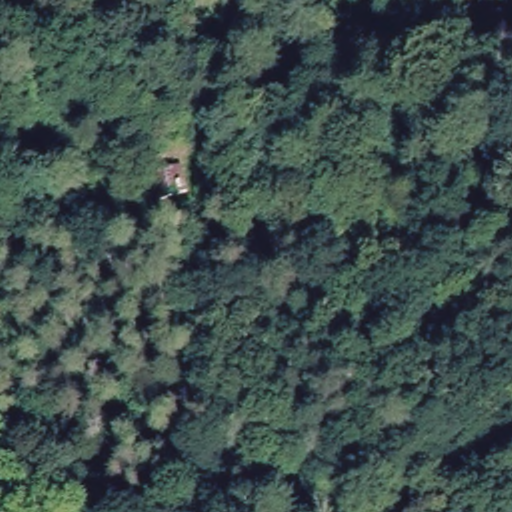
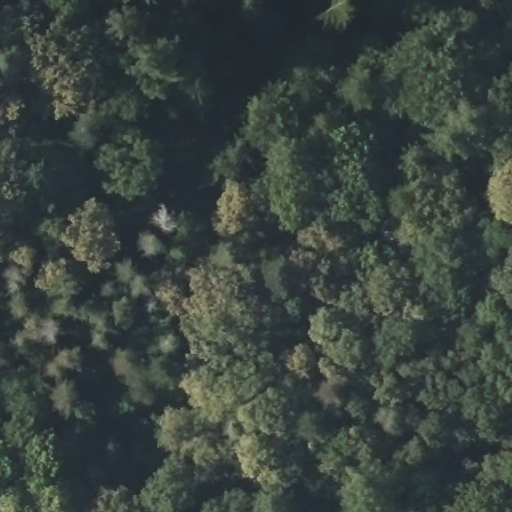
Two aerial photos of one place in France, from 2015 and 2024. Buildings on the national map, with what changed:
unchanged [(173,162),(182,188),(155,195),(147,168),(173,162)]

